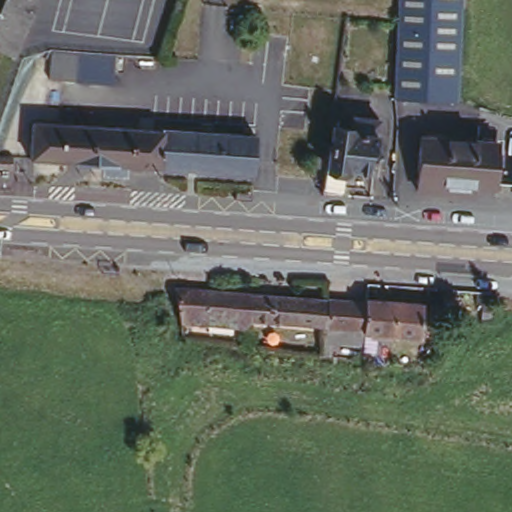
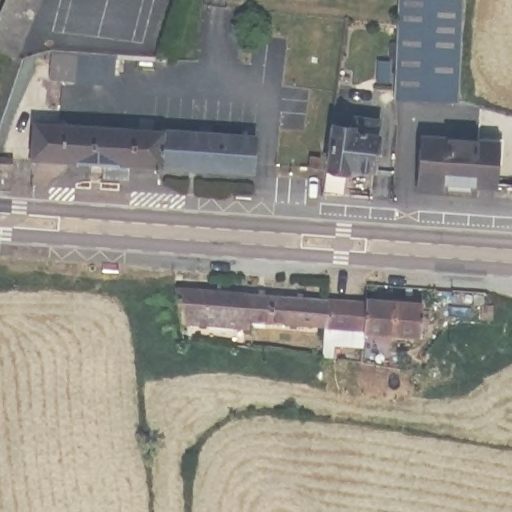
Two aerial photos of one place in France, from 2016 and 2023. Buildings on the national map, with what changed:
unchanged [(0,43),(0,12),(5,0),(37,0),(17,49),(0,43)]
unchanged [(456,101),(392,99),(398,0),(459,0),(456,101)]
unchanged [(57,83),(62,56),(102,60),(98,88),(57,83)]
unchanged [(332,126),(356,131),(358,121),(383,126),(371,172),(325,163),(332,126)]
unchanged [(100,124),(98,163),(34,159),(36,122),(100,124)]
unchanged [(149,126),(162,126),(160,167),(155,166),(98,163),(100,124),(149,126)]
unchanged [(240,129),(255,129),(252,170),(160,167),(162,126),(240,129)]
unchanged [(465,189),(423,187),(425,136),(499,138),(496,181),(478,180),(479,190),(465,189)]
unchanged [(305,156),(305,146),(316,148),(315,158),(305,156)]
unchanged [(270,288),(332,292),(329,326),(300,324),(254,319),(254,327),(200,325),(200,333),(190,331),(189,325),(185,324),(181,293),(180,285),(270,288)]
unchanged [(367,296),(370,295),(365,332),(364,332),(361,328),(329,326),(332,292),(367,296)]
unchanged [(426,299),(424,337),(365,332),(370,295),(426,299)]
unchanged [(475,297),(470,318),(445,314),(450,295),(475,297)]

